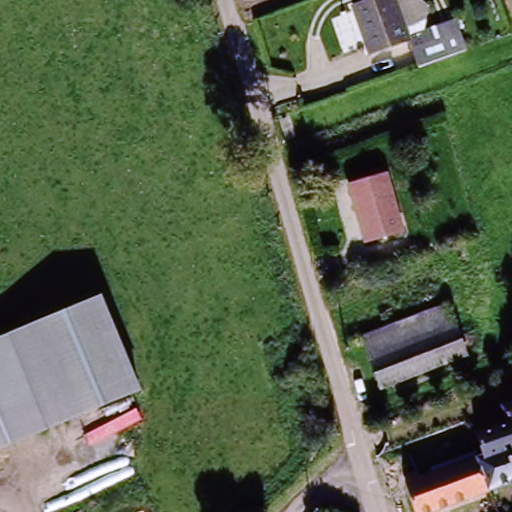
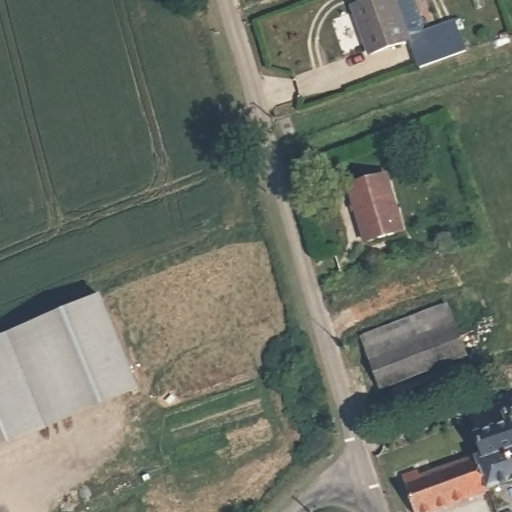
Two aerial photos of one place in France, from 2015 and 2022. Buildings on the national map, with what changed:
unchanged [(420,71),(411,44),(369,57),(351,8),(374,0),(420,0),(430,9),(427,31),(458,19),(469,52),(420,71)]
unchanged [(400,227),(363,237),(349,182),(386,172),(400,227)]
unchanged [(101,292),(141,385),(46,427),(6,335),(101,292)]
unchanged [(446,310),(463,362),(379,391),(361,339),(446,310)]
unchanged [(6,335),(46,427),(0,448),(0,337),(6,335)]
unchanged [(416,473),(418,478),(454,466),(478,459),(470,432),(508,422),(504,409),(512,406),(512,485),(489,492),(464,499),(422,512),(411,512),(401,478),(416,473)]

